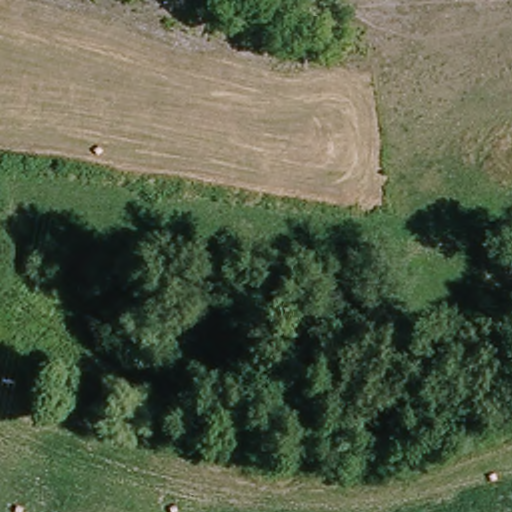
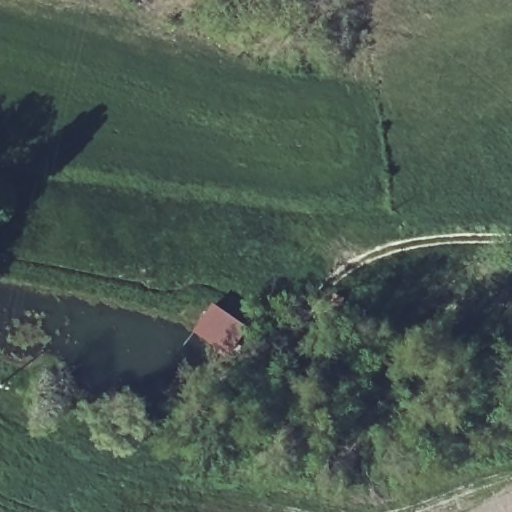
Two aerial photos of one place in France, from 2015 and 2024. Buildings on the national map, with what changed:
new [(215,303),(251,327),(231,354),(196,331),(215,303)]

